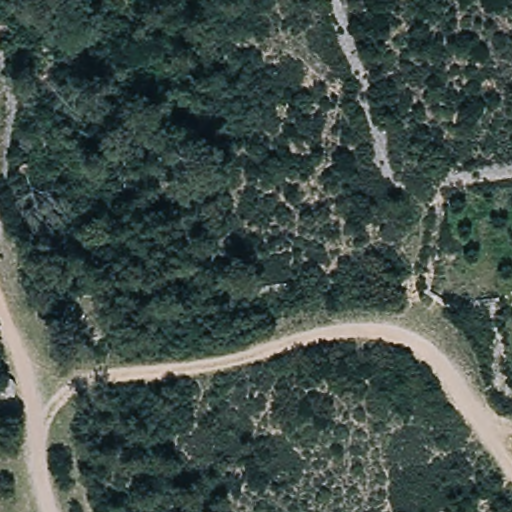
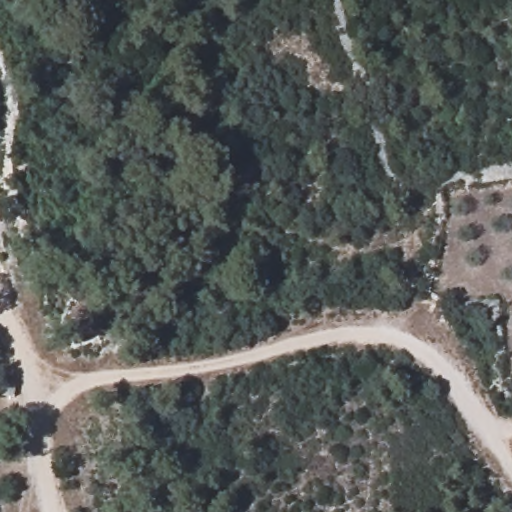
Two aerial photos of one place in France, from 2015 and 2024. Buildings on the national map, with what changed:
unchanged [(15,397),(12,400),(7,401),(2,400),(0,399),(0,378),(2,376),(7,375),(12,376),(15,379),(18,383),(20,388),(18,393),(15,397)]

